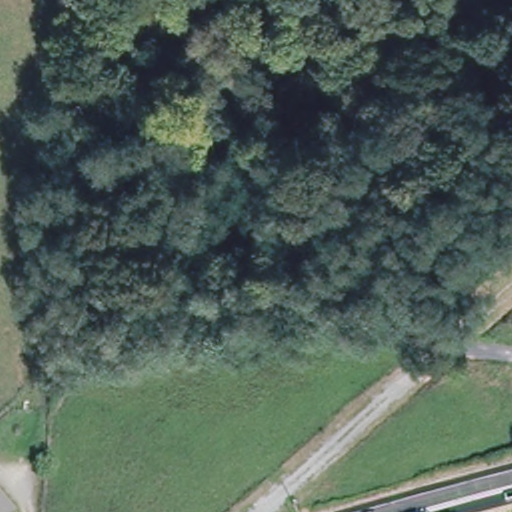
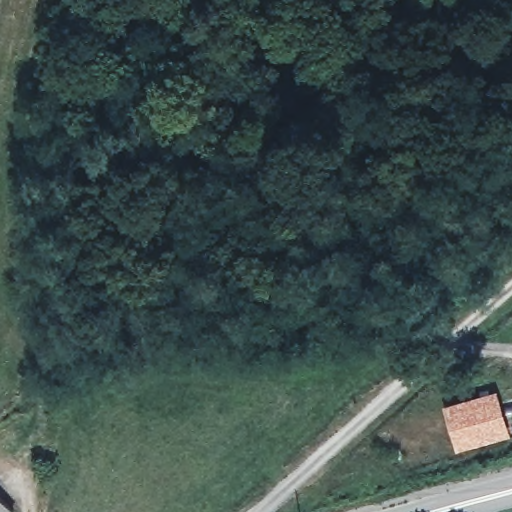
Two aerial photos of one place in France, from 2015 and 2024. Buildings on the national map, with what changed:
new [(512,435),(457,452),(443,405),(496,390),(512,435)]
unchanged [(11,512),(0,512),(0,498),(11,511),(11,512)]

